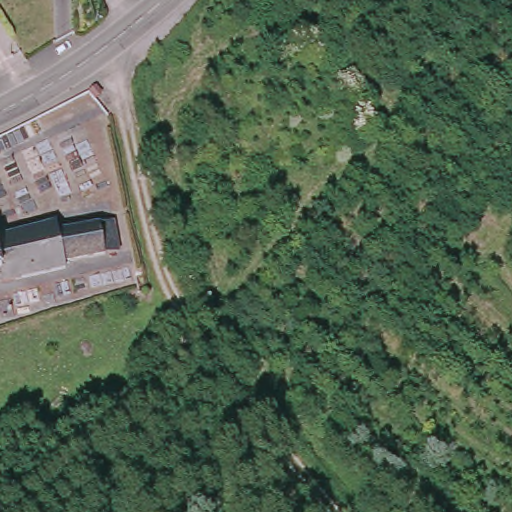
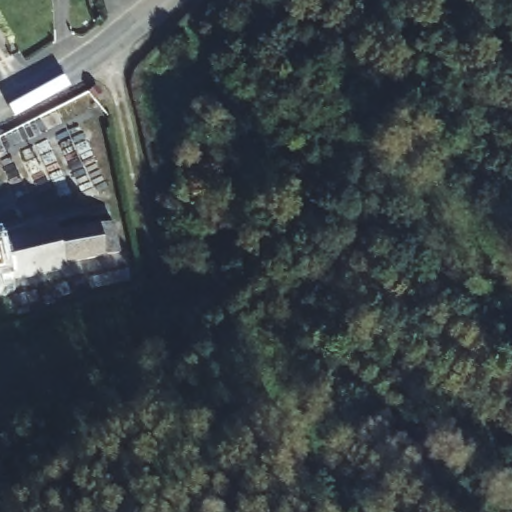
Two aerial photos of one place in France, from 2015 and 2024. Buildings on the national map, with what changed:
unchanged [(125,3),(122,0),(128,0),(125,3)]
unchanged [(56,230),(58,241),(110,232),(113,257),(64,266),(66,277),(0,288),(0,239),(56,230)]

